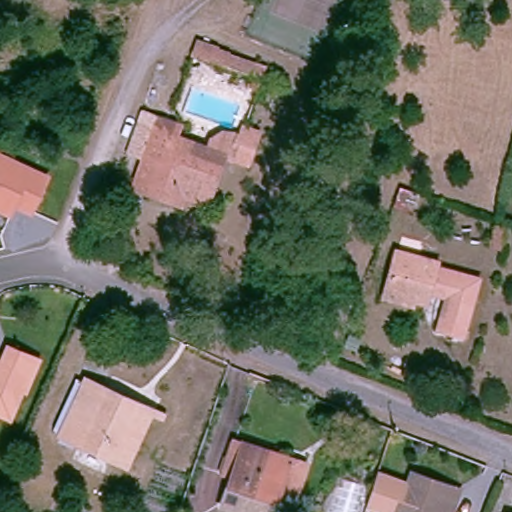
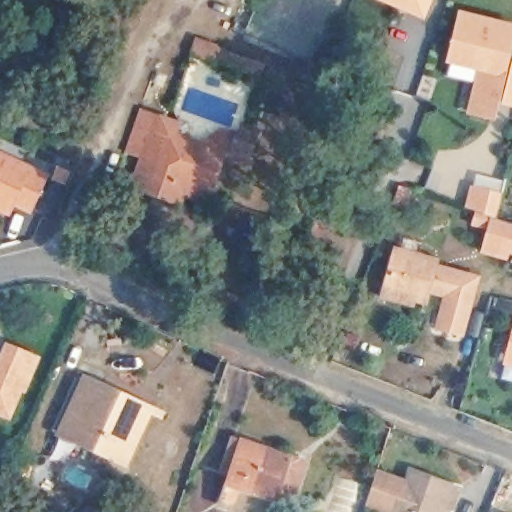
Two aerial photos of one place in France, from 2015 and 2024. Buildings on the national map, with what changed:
new [(375,0),(432,0),(423,21),(375,0)]
new [(512,24),(512,38),(492,115),(469,109),(481,65),(449,57),(461,10),(512,24)]
new [(190,54),(196,38),(267,62),(262,79),(190,54)]
new [(512,102),(505,101),(512,71),(512,102)]
unchanged [(184,200),(175,197),(150,187),(119,173),(139,117),(146,97),(164,103),(157,122),(229,149),(217,184),(214,193),(189,185),(184,200)]
unchanged [(256,135),(249,156),(229,149),(234,128),(256,135)]
unchanged [(35,211),(19,204),(14,213),(0,207),(0,153),(52,177),(35,211)]
new [(476,172),(505,180),(501,197),(495,218),(467,209),(472,189),(476,172)]
demolished [(512,217),(512,220),(505,241),(492,236),(499,212),(512,217)]
new [(512,227),(512,262),(486,254),(494,221),(512,227)]
unchanged [(387,294),(390,283),(398,249),(481,272),(463,327),(442,320),(451,291),(431,284),(428,295),(427,307),(387,294)]
new [(512,328),(512,366),(503,364),(512,328)]
unchanged [(1,360),(7,344),(39,357),(32,373),(28,372),(15,403),(10,415),(0,411),(0,359),(1,360)]
unchanged [(84,377),(102,384),(105,380),(149,398),(126,454),(62,429),(84,377)]
unchanged [(222,502),(245,441),(286,457),(266,512),(251,512),(222,502)]
unchanged [(372,500),(382,467),(412,480),(417,468),(463,487),(454,509),(453,512),(403,512),(372,500)]

